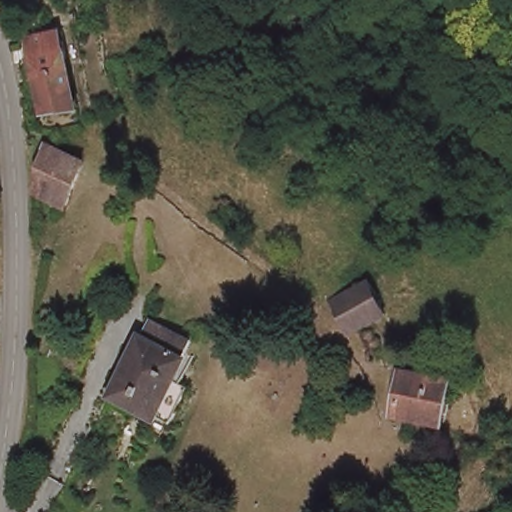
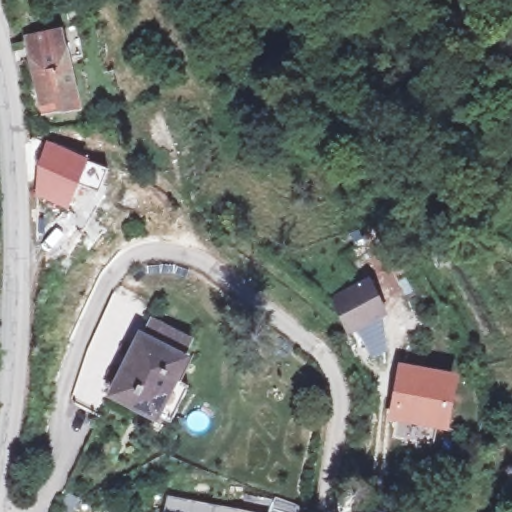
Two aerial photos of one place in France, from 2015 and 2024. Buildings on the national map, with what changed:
unchanged [(86,112),(51,124),(23,38),(58,26),(86,112)]
unchanged [(85,158),(80,178),(72,210),(35,200),(49,147),(85,158)]
unchanged [(396,314),(351,338),(331,303),(360,288),(379,277),(396,314)]
unchanged [(185,340),(179,356),(184,357),(173,382),(189,387),(171,431),(104,405),(131,342),(137,343),(146,326),(185,340)]
unchanged [(450,380),(450,386),(443,415),(440,425),(387,416),(400,371),(450,380)]
new [(214,506),(249,512),(165,512),(168,496),(214,506)]
new [(275,498),(301,508),(300,512),(268,512),(275,498)]

